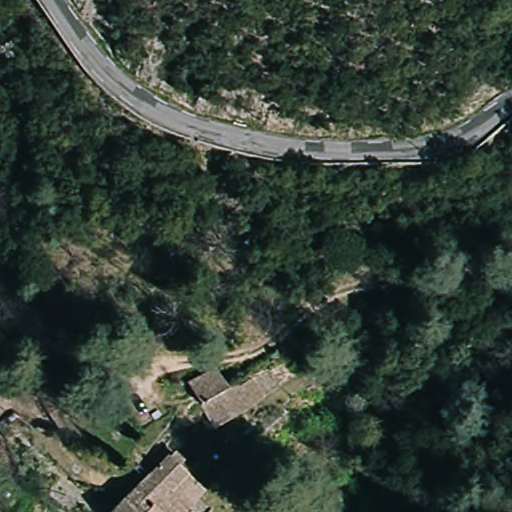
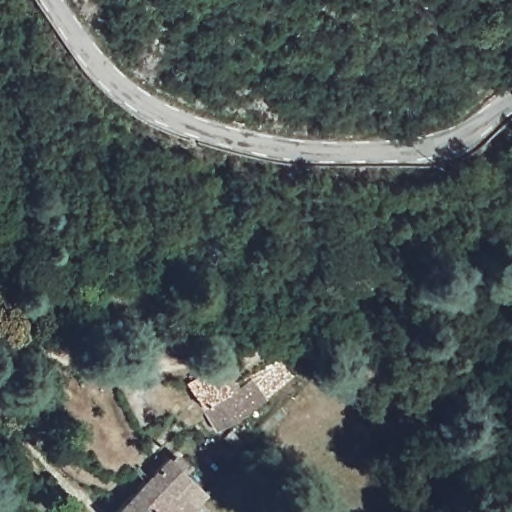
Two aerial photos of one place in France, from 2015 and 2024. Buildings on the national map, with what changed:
unchanged [(201,406),(187,381),(220,365),(230,387),(276,360),(289,383),(215,430),(201,406)]
unchanged [(205,492),(186,512),(111,512),(169,454),(205,492)]

